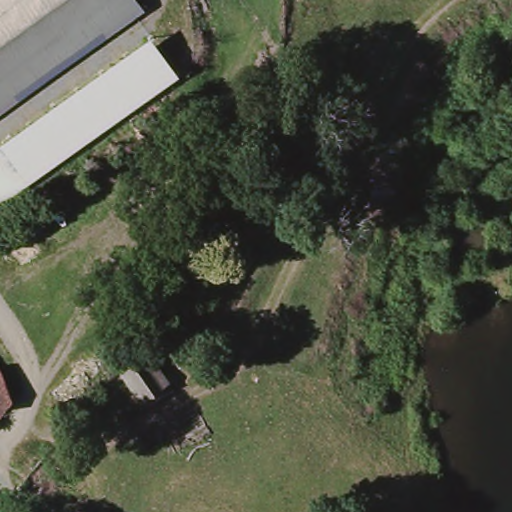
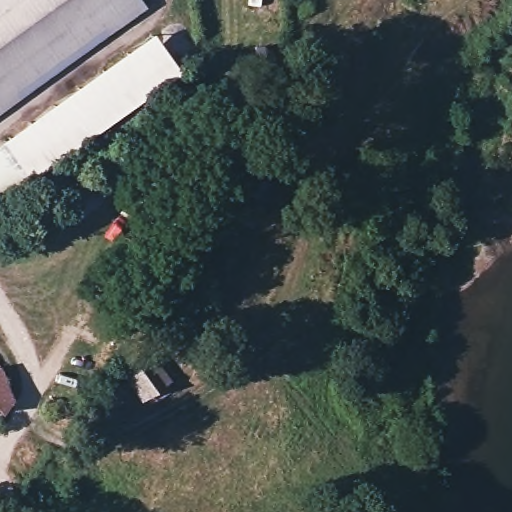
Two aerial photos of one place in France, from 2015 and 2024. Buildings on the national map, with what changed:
unchanged [(0,114),(0,0),(143,0),(150,10),(0,114)]
unchanged [(165,91),(0,206),(0,144),(132,45),(165,91)]
unchanged [(10,375),(18,398),(5,413),(0,405),(0,353),(3,358),(10,375)]
unchanged [(148,398),(130,375),(156,357),(173,380),(148,398)]

